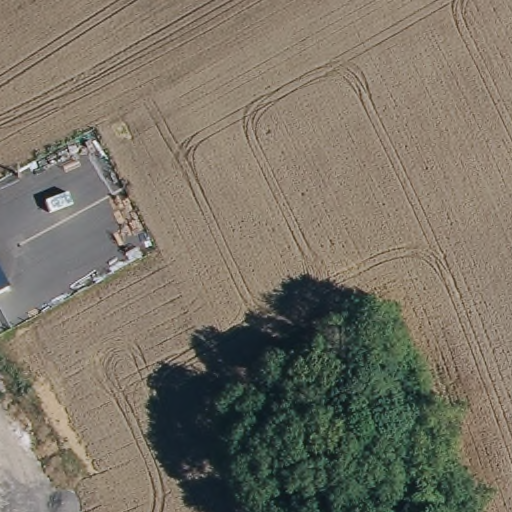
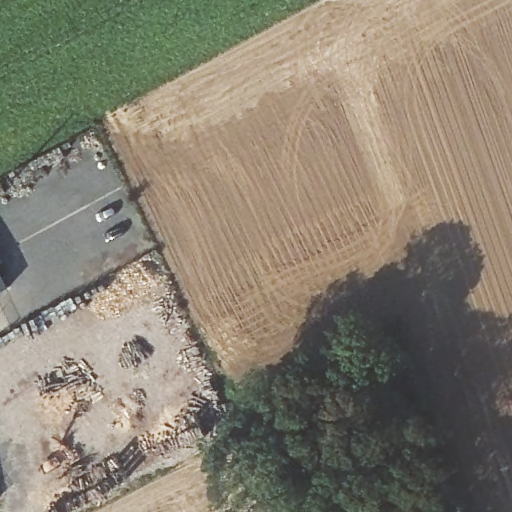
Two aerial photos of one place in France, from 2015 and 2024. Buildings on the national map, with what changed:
unchanged [(0,294),(0,272),(9,290),(0,294)]

